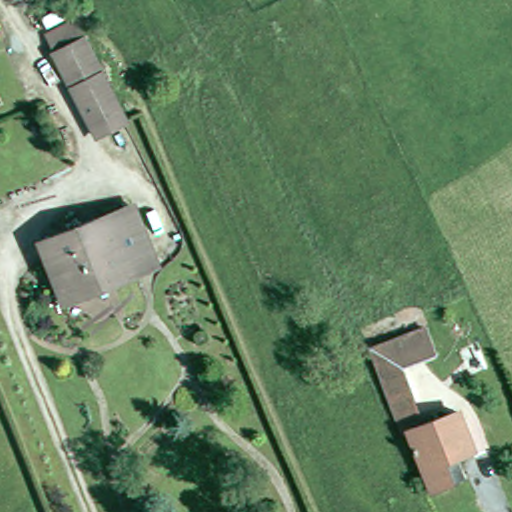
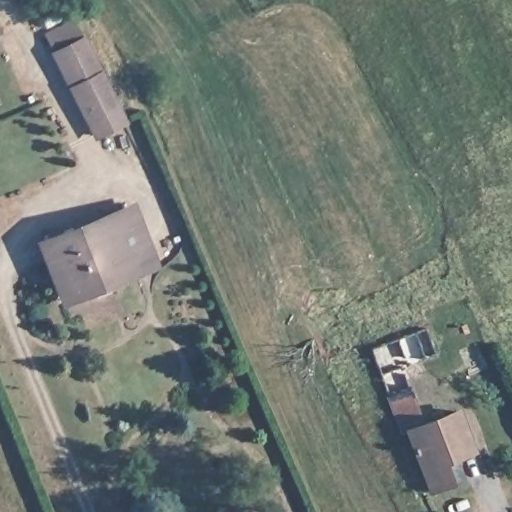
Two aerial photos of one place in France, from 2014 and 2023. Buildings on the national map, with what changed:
unchanged [(73,86),(47,35),(75,21),(100,72),(73,86)]
unchanged [(126,123),(98,137),(73,86),(100,72),(126,123)]
unchanged [(104,220),(133,209),(155,265),(126,277),(104,220)]
unchanged [(41,245),(104,220),(126,277),(108,285),(107,281),(92,287),(93,290),(75,297),(64,302),(49,264),(41,245)]
unchanged [(431,497),(416,458),(414,458),(412,453),(414,452),(408,436),(402,439),(394,420),(370,354),(426,332),(436,359),(402,373),(424,430),(458,415),(464,434),(466,433),(468,440),(467,440),(473,456),(456,463),(463,483),(453,488),(431,497)]

